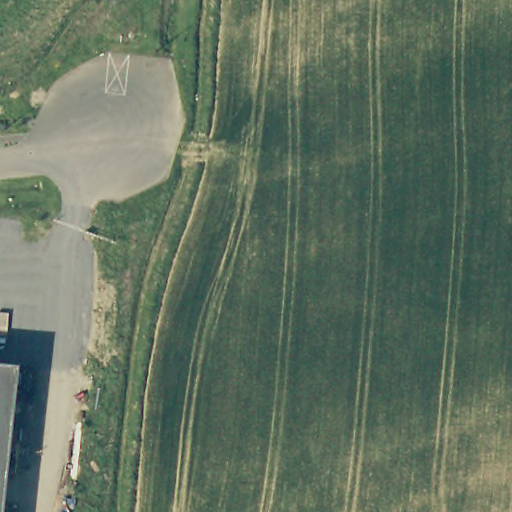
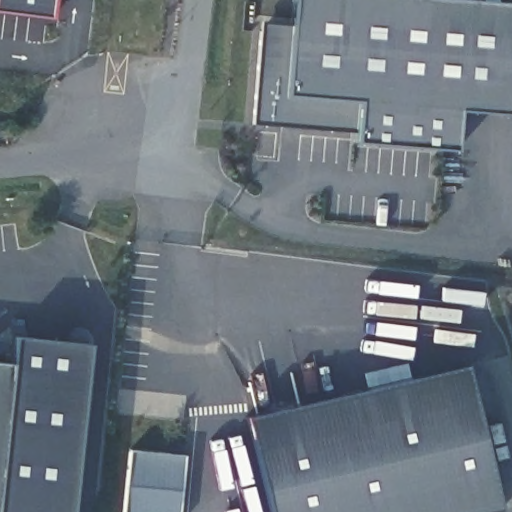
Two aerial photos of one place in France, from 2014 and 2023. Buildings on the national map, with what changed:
new [(49,16),(0,10),(0,0),(52,0),(49,16)]
new [(511,114),(460,111),(457,148),(355,139),(356,132),(253,124),(260,22),(289,27),(292,0),(474,0),(512,3),(512,101),(511,114)]
new [(14,335),(90,343),(71,512),(0,512),(0,485),(13,364),(14,335)]
unchanged [(0,484),(0,363),(13,364),(0,484)]
new [(501,511),(497,512),(273,512),(251,416),(467,365),(501,511)]
new [(125,512),(131,451),(184,457),(181,512),(125,512)]

